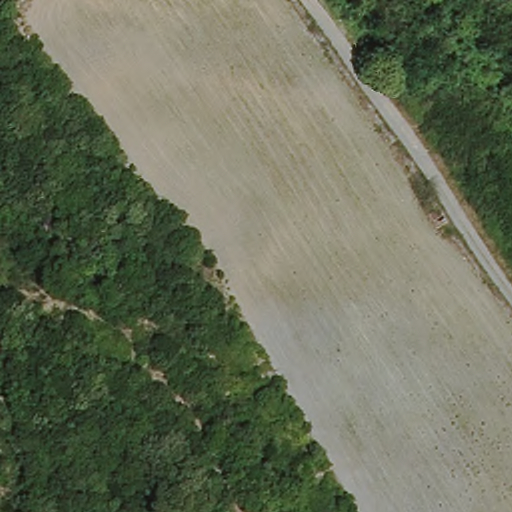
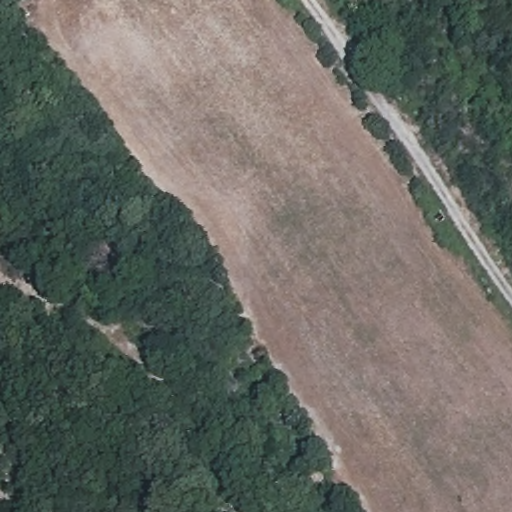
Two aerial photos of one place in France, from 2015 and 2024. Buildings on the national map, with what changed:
unchanged [(433,205),(444,220),(428,230),(417,216),(433,205)]

